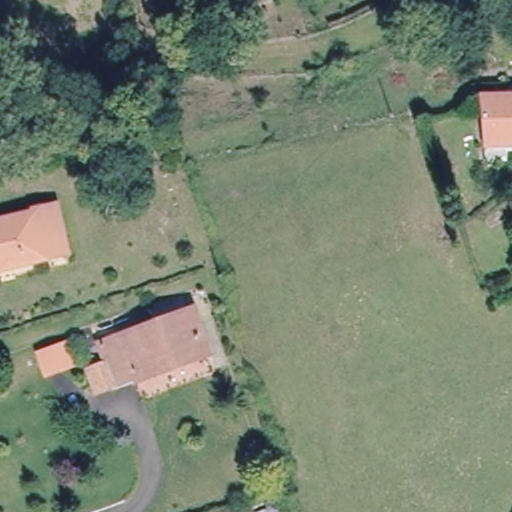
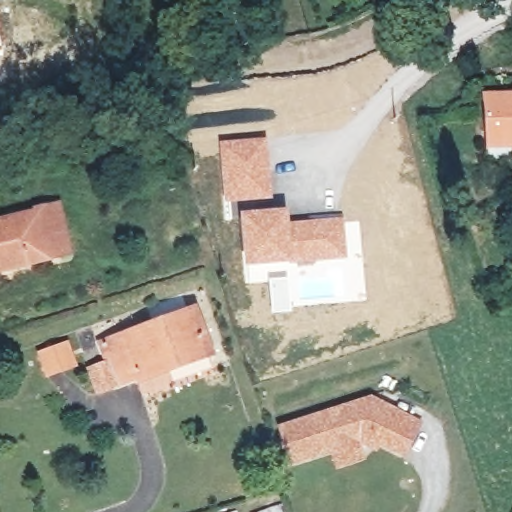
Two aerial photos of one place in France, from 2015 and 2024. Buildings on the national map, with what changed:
unchanged [(512,141),(488,141),(487,95),(512,95),(512,141)]
new [(265,135),(273,198),(224,202),(217,141),(265,135)]
new [(286,205),(288,221),(342,215),(346,257),(245,266),(238,212),(286,205)]
unchanged [(39,258),(0,267),(0,223),(29,216),(28,212),(49,207),(55,233),(60,253),(39,258)]
unchanged [(101,343),(193,308),(210,351),(136,381),(134,377),(117,383),(101,392),(90,362),(107,357),(101,343)]
unchanged [(67,341),(75,365),(48,375),(39,351),(67,341)]
new [(404,458),(380,446),(377,453),(361,444),(365,459),(336,468),(331,452),(287,465),(275,425),(371,393),(422,420),(404,458)]

